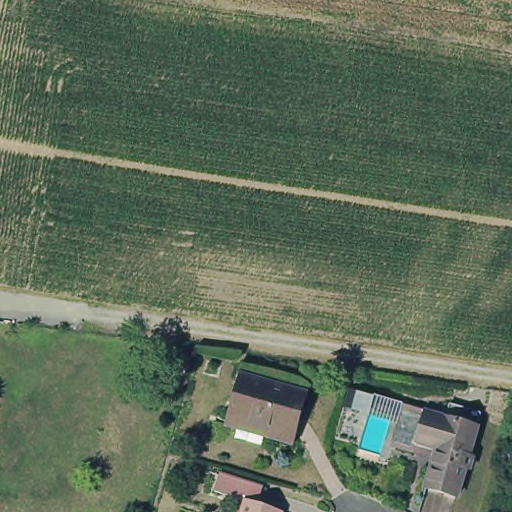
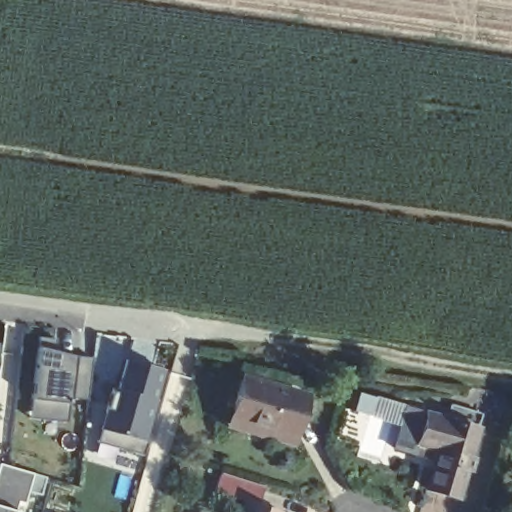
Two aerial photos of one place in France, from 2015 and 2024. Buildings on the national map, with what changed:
new [(37,334),(55,336),(52,353),(60,354),(60,351),(92,355),(87,397),(69,395),(66,419),(45,417),(28,415),(30,396),(37,334)]
new [(111,385),(117,387),(125,357),(161,367),(152,397),(154,397),(145,430),(147,431),(142,452),(117,445),(95,439),(100,426),(111,385)]
unchanged [(273,431),(220,418),(232,370),(286,383),(273,431)]
unchanged [(463,464),(458,464),(451,488),(422,482),(435,439),(412,435),(418,411),(471,423),(463,449),(468,450),(463,464)]
new [(24,500),(17,498),(15,507),(20,509),(19,512),(0,512),(0,461),(32,470),(24,500)]
unchanged [(235,512),(237,502),(206,495),(210,473),(257,485),(253,505),(277,510),(277,512),(235,512)]

